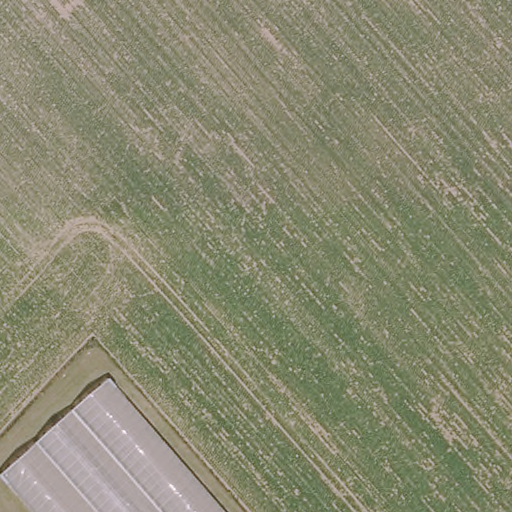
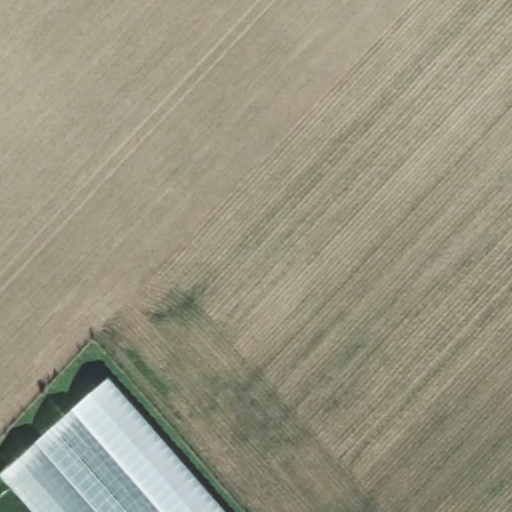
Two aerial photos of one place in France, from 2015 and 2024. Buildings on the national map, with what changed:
unchanged [(0,470),(106,376),(226,512),(34,512),(0,473),(0,470)]

